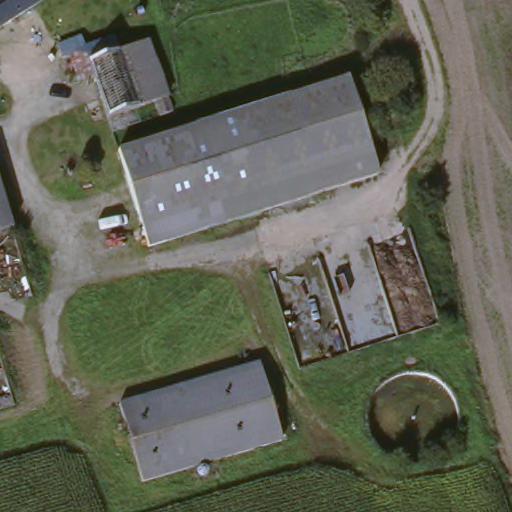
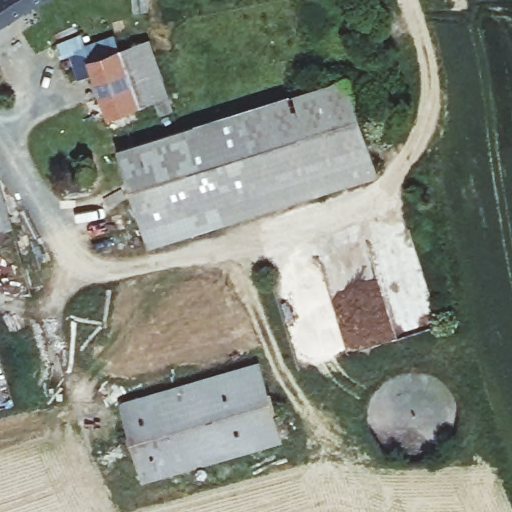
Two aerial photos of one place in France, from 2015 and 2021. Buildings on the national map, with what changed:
unchanged [(0,27),(0,0),(43,0),(0,27)]
unchanged [(111,113),(95,71),(80,76),(66,40),(86,32),(91,41),(118,31),(124,47),(144,102),(111,113)]
unchanged [(124,47),(153,38),(174,96),(178,105),(164,109),(161,100),(161,97),(144,102),(124,47)]
unchanged [(146,251),(118,159),(348,88),(379,180),(146,251)]
unchanged [(7,231),(0,233),(0,206),(7,231)]
unchanged [(217,415),(163,429),(126,438),(119,414),(256,372),(266,401),(217,415)]
unchanged [(283,449),(141,490),(126,438),(163,429),(217,415),(266,401),(283,449)]

